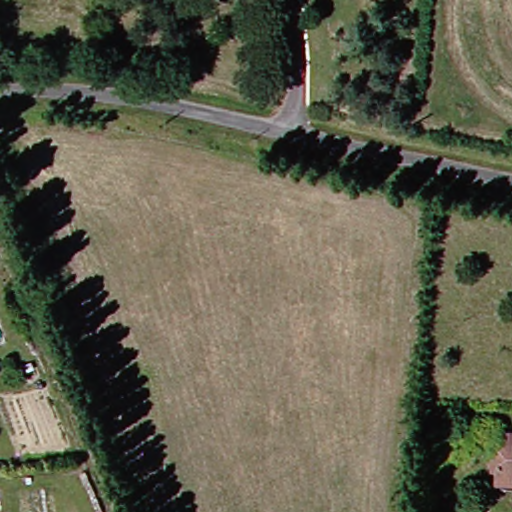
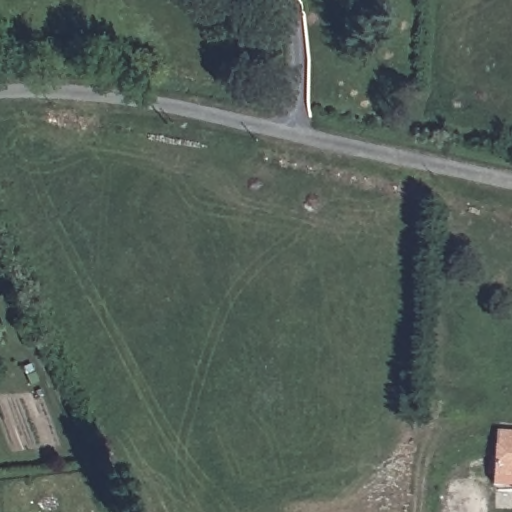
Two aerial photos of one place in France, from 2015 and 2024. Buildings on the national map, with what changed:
unchanged [(512,497),(510,497),(511,489),(487,485),(497,433),(512,436),(512,497)]

